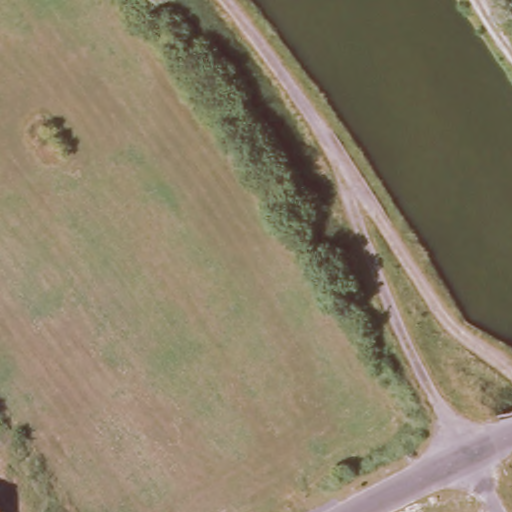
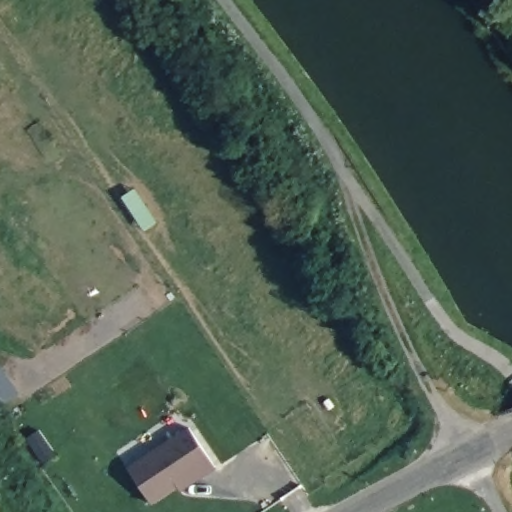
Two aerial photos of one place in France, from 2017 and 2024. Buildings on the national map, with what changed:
new [(1,369),(18,393),(5,402),(0,394),(0,370),(1,369)]
new [(126,467),(187,426),(213,466),(200,475),(197,470),(149,503),(126,467)]
new [(175,485),(197,470),(200,475),(178,490),(175,485)]

